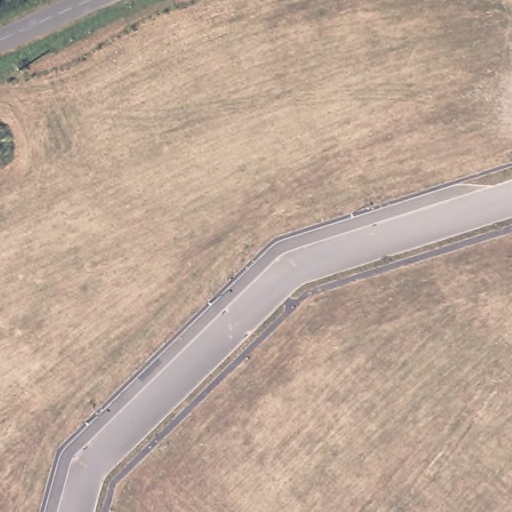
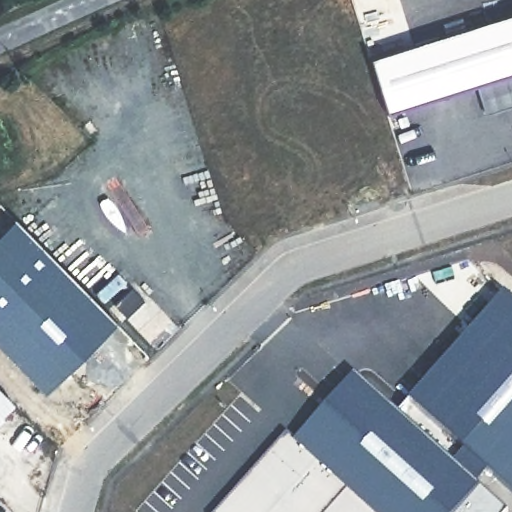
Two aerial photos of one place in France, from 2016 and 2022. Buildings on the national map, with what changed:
new [(484,114),(474,84),(384,113),(367,57),(512,11),(512,105),(484,114)]
new [(450,512),(377,512),(294,440),(354,372),(399,411),(504,291),(512,298),(512,492),(487,469),(477,480),(450,512)]
new [(0,406),(0,390),(8,399),(0,406)]
new [(287,432),(294,440),(377,512),(215,512),(287,432)]
new [(477,480),(480,484),(507,507),(502,512),(450,512),(477,480)]

